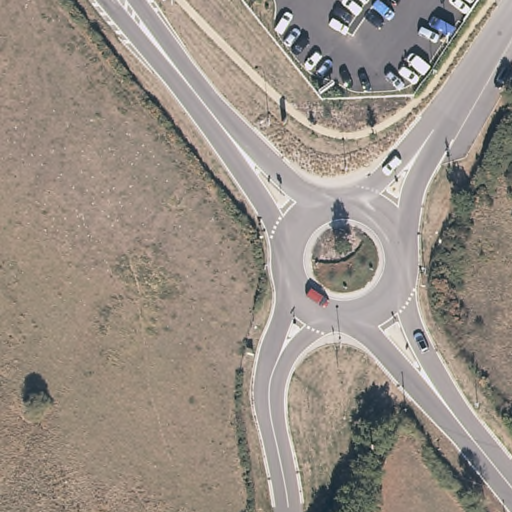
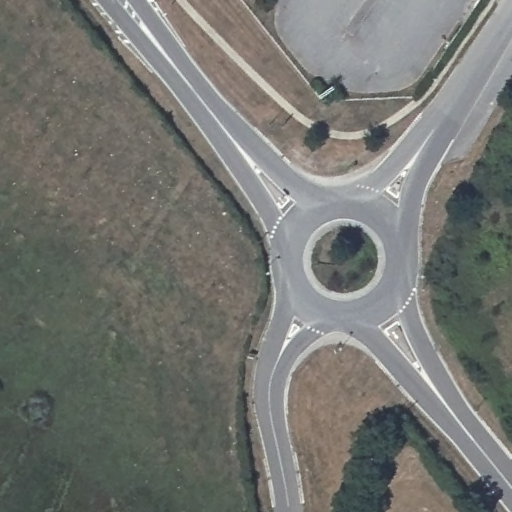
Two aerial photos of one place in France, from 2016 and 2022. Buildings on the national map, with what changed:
[]

